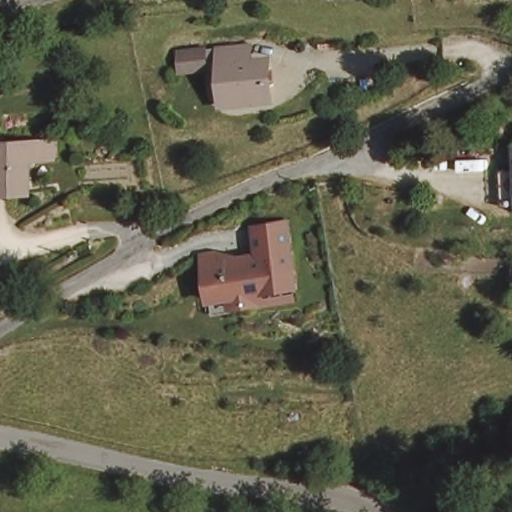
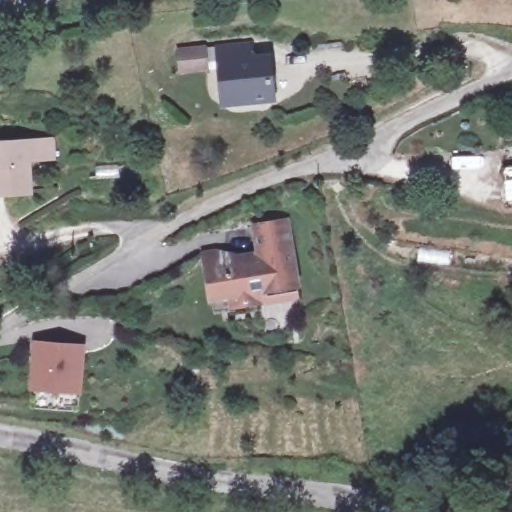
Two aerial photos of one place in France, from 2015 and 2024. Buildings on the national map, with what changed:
unchanged [(223,86),(221,40),(248,40),(250,57),(268,57),(270,96),(246,97),(224,97),(223,86)]
unchanged [(207,69),(182,69),(181,49),(206,49),(207,69)]
unchanged [(0,195),(0,141),(50,143),(49,164),(27,164),(27,186),(28,196),(0,195)]
unchanged [(221,295),(218,278),(210,250),(220,247),(229,247),(252,253),(264,250),(258,220),(289,212),(301,277),(304,288),(266,295),(241,300),(222,305),(221,295)]
new [(30,391),(34,340),(87,345),(83,393),(30,391)]

